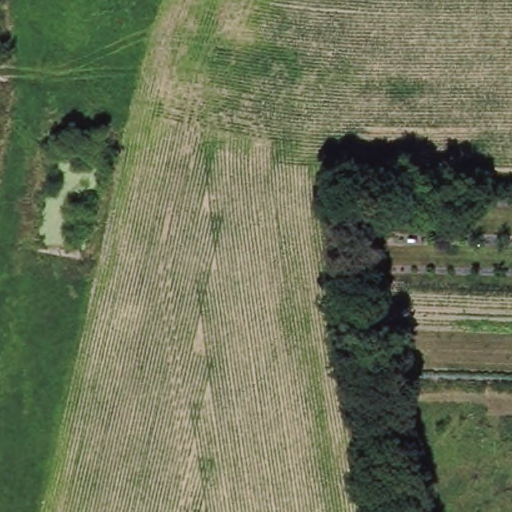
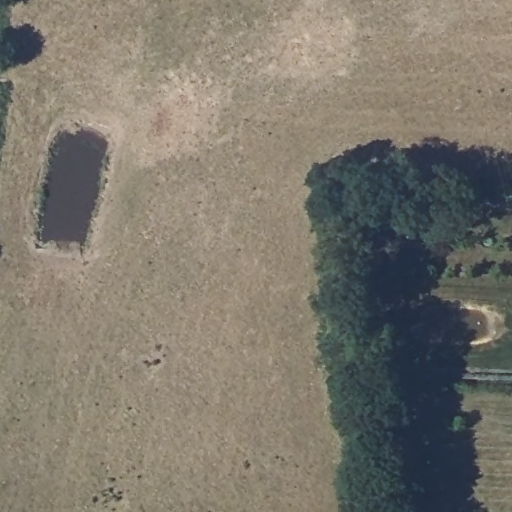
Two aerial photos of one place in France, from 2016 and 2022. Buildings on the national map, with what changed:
[]

